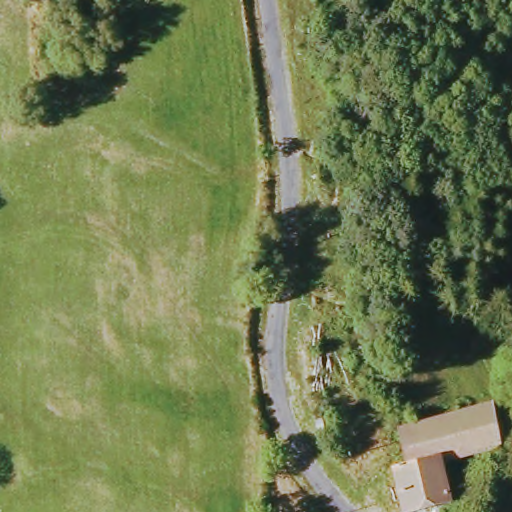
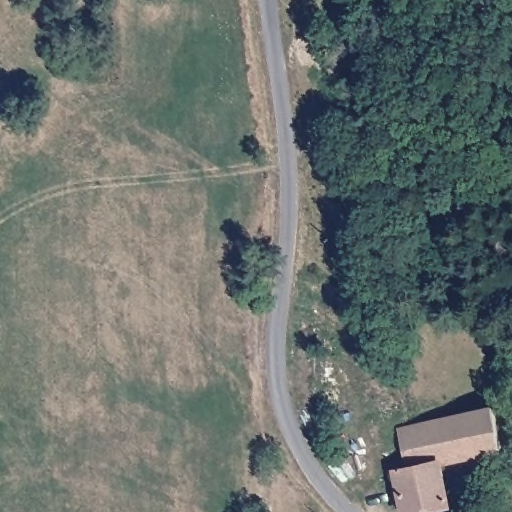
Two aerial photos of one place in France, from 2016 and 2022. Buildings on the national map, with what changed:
unchanged [(497,405),(505,448),(445,461),(455,501),(411,512),(399,467),(413,462),(404,427),(417,424),(497,405)]

